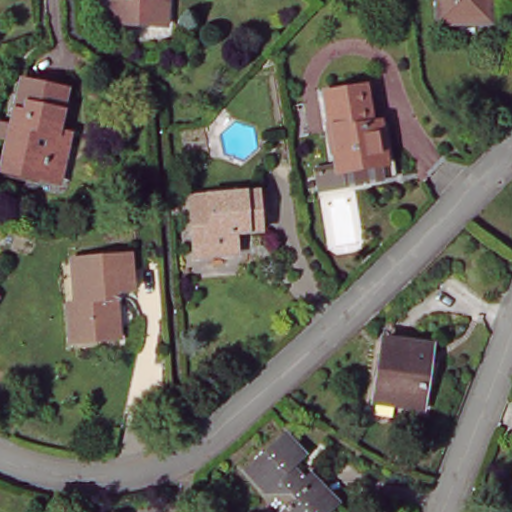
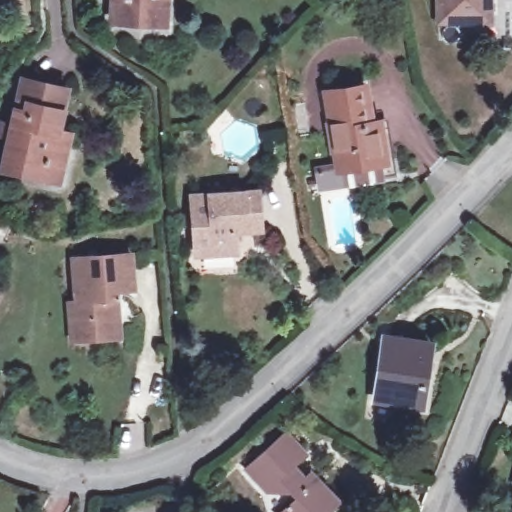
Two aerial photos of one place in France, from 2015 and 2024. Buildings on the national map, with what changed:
unchanged [(155,23),(111,20),(112,0),(167,0),(166,24),(155,23)]
unchanged [(483,22),(438,22),(437,0),(491,0),(491,22),(483,22)]
unchanged [(35,175),(0,167),(0,157),(5,135),(0,134),(0,122),(8,123),(19,77),(60,87),(51,128),(63,131),(56,163),(52,179),(35,175)]
unchanged [(314,172),(334,168),(322,92),(361,86),(368,123),(373,122),(379,160),(389,158),(391,177),(337,185),(316,188),(314,172)]
unchanged [(197,248),(193,190),(257,185),(260,223),(235,225),(235,246),(197,248)]
unchanged [(124,311),(126,331),(79,335),(76,297),(83,297),(79,252),(134,248),(136,248),(139,284),(137,284),(125,285),(126,295),(116,295),(117,311),(124,311)]
unchanged [(376,399),(385,338),(431,346),(422,406),(376,399)]
unchanged [(300,483),(307,477),(310,480),(313,478),(315,477),(317,477),(318,477),(320,478),(342,502),(331,512),(288,512),(300,501),(295,496),(277,497),(274,493),(271,496),(251,472),(292,435),(313,457),(293,475),(300,483)]

